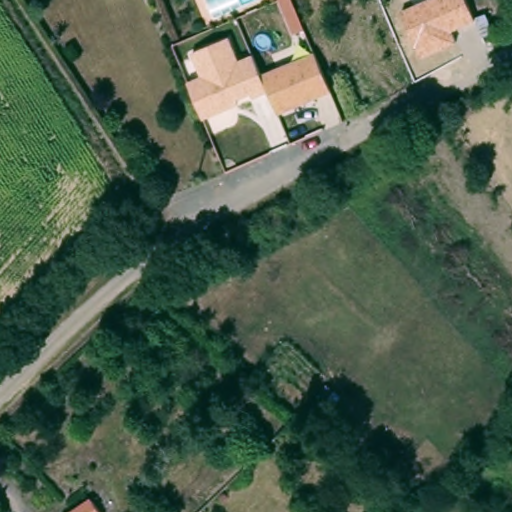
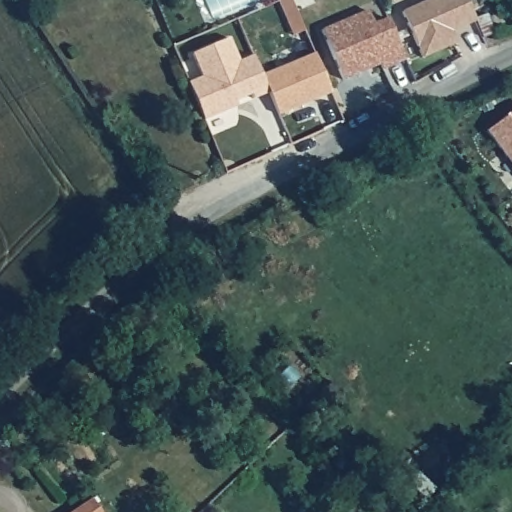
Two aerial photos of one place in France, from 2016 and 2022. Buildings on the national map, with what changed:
unchanged [(284,0),(297,0),(304,17),(293,21),(284,0)]
unchanged [(428,0),(466,0),(474,22),(453,32),(458,45),(420,60),(402,11),(428,0)]
unchanged [(474,5),(485,1),(493,20),(482,25),(474,5)]
new [(367,10),(373,24),(387,18),(405,59),(382,69),(380,64),(343,80),(321,30),(367,10)]
unchanged [(254,99),(252,93),(237,100),(240,106),(202,120),(187,82),(202,76),(194,54),(229,38),(239,60),(254,55),(262,73),(269,91),(254,99)]
unchanged [(314,51),(331,91),(278,114),(262,73),(314,51)]
new [(512,111),(512,163),(487,130),(512,111)]
unchanged [(93,499),(101,512),(73,512),(93,499)]

